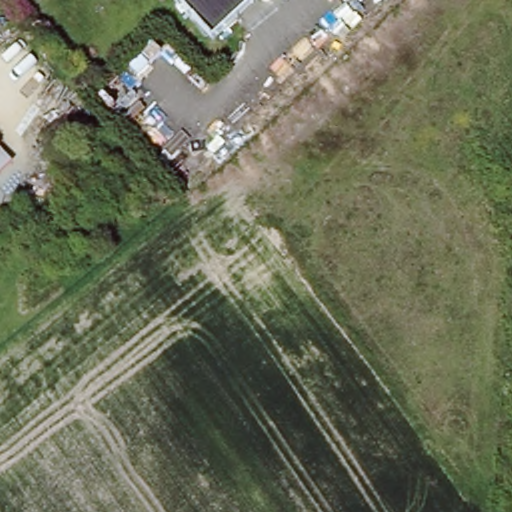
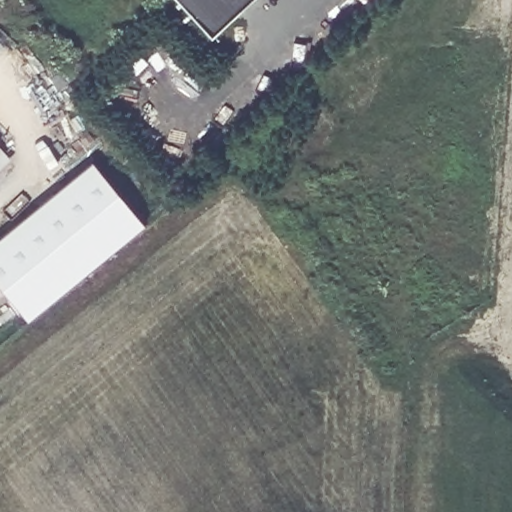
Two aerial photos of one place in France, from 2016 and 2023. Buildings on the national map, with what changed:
unchanged [(182,0),(249,0),(214,34),(182,0)]
new [(0,285),(0,237),(93,161),(146,225),(30,320),(0,285)]

